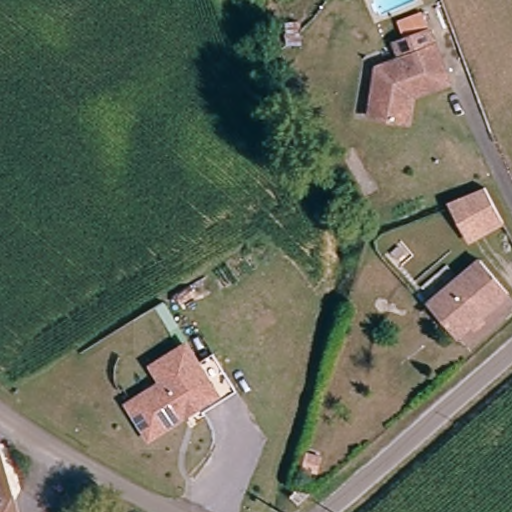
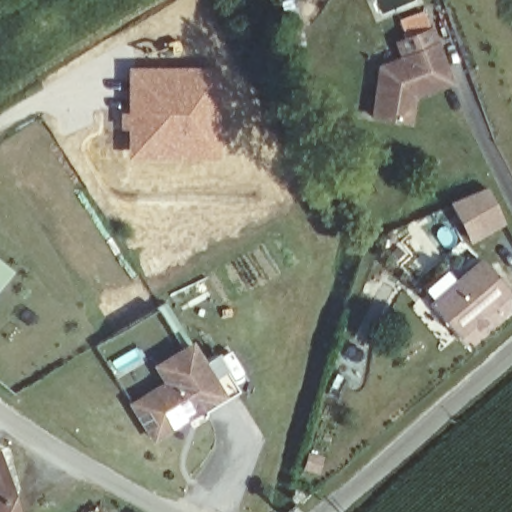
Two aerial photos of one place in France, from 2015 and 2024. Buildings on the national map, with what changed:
unchanged [(409,101),(405,127),(366,121),(374,72),(399,62),(393,48),(403,44),(396,27),(420,18),(427,35),(447,87),(409,101)]
new [(216,67),(218,160),(126,159),(126,129),(119,129),(118,112),(126,111),(126,68),(216,67)]
unchanged [(457,219),(450,205),(485,191),(503,225),(485,234),(469,243),(457,219)]
unchanged [(456,341),(429,309),(482,265),(509,297),(456,341)]
unchanged [(194,415),(157,439),(136,406),(171,384),(161,367),(194,346),(205,364),(223,394),(204,406),(206,408),(194,415)]

